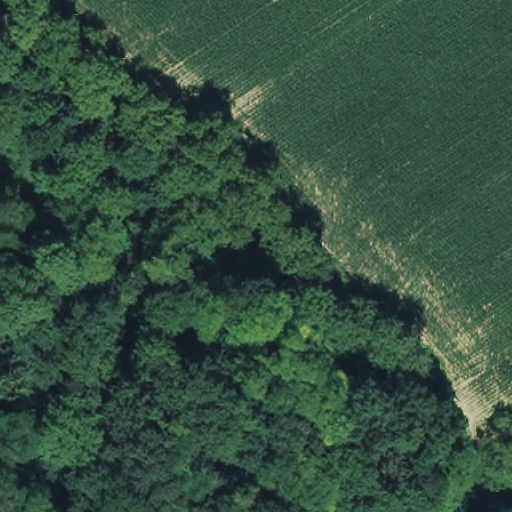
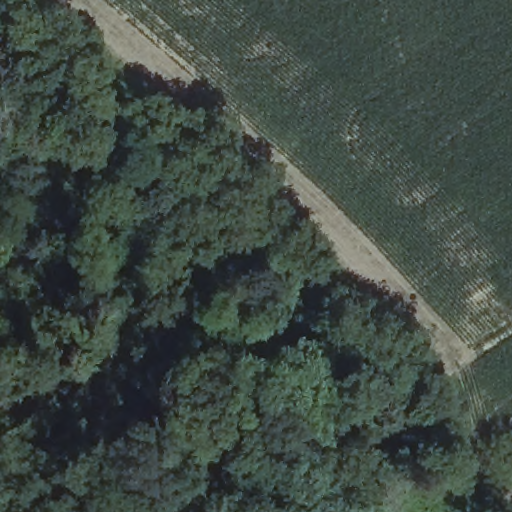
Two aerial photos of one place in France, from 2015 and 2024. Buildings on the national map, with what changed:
[]

